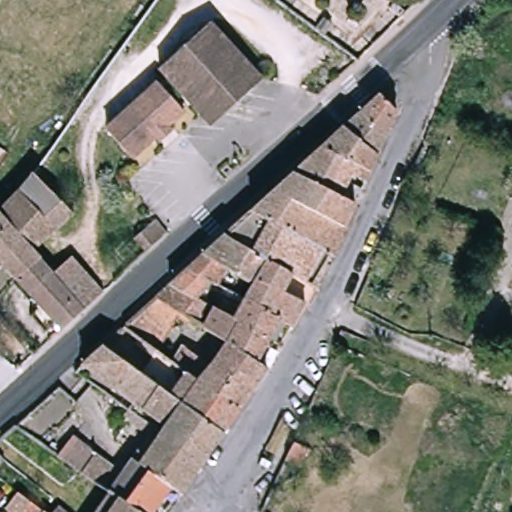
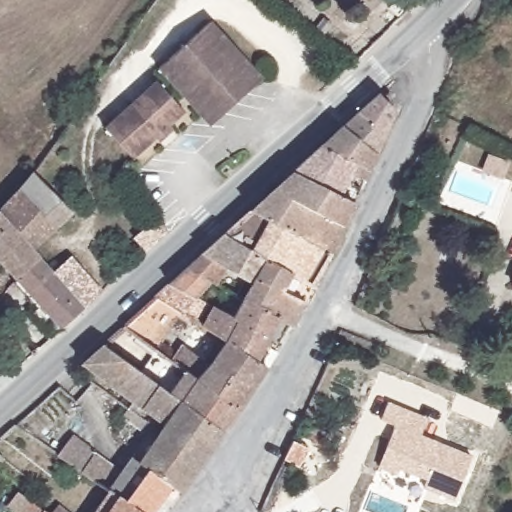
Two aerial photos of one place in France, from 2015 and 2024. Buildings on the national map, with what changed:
unchanged [(185,96),(159,69),(208,24),(260,80),(228,109),(212,124),(185,96)]
unchanged [(158,82),(184,110),(133,158),(107,130),(158,82)]
unchanged [(401,112),(381,154),(351,129),(386,97),(401,112)]
unchanged [(371,175),(328,149),(351,129),(381,154),(371,175)]
unchanged [(355,176),(350,186),(363,192),(356,207),(301,174),(328,149),(371,175),(368,182),(355,176)]
unchanged [(356,207),(333,255),(259,213),(301,174),(356,207)]
unchanged [(25,176),(60,212),(65,216),(44,236),(7,197),(25,176)]
unchanged [(63,257),(45,273),(31,260),(0,227),(0,205),(7,197),(44,236),(63,257)]
unchanged [(265,354),(275,361),(271,367),(240,347),(195,315),(166,297),(178,286),(194,272),(259,213),(333,255),(316,287),(300,317),(289,311),(282,322),(273,340),(265,354)]
unchanged [(158,216),(169,227),(149,246),(138,234),(158,216)]
unchanged [(31,260),(9,281),(0,272),(0,227),(31,260)]
unchanged [(95,291),(77,307),(45,273),(63,257),(95,291)]
unchanged [(54,328),(9,281),(31,260),(45,273),(77,307),(54,328)]
unchanged [(509,287),(512,280),(512,288),(509,287)]
unchanged [(166,297),(195,315),(165,352),(131,328),(166,297)]
unchanged [(113,344),(157,377),(167,383),(144,409),(89,367),(113,344)]
unchanged [(191,347),(222,368),(240,347),(271,367),(245,406),(188,367),(180,362),(191,347)]
unchanged [(230,427),(173,388),(188,367),(245,406),(230,427)]
demolished [(5,373),(0,378),(0,368),(5,373)]
unchanged [(144,409),(167,383),(173,388),(230,427),(205,464),(172,442),(177,435),(152,415),(147,422),(138,416),(144,409)]
new [(423,488),(426,482),(400,469),(397,475),(378,467),(395,426),(380,420),(389,401),(430,420),(423,434),(472,455),(455,501),(423,488)]
unchanged [(76,428),(138,470),(143,464),(152,471),(149,473),(128,505),(115,496),(57,457),(76,428)]
unchanged [(172,442),(205,464),(183,496),(149,473),(152,471),(166,450),(163,447),(169,439),(172,442)]
unchanged [(294,461),(281,455),(288,439),(301,445),(294,461)]
unchanged [(11,463),(0,477),(0,456),(11,463)]
unchanged [(183,496),(172,512),(138,512),(128,505),(149,473),(183,496)]
unchanged [(23,493),(49,512),(16,512),(12,509),(23,493)]
unchanged [(103,512),(115,496),(128,505),(138,512),(103,512)]
unchanged [(60,512),(62,510),(64,512),(60,512)]

